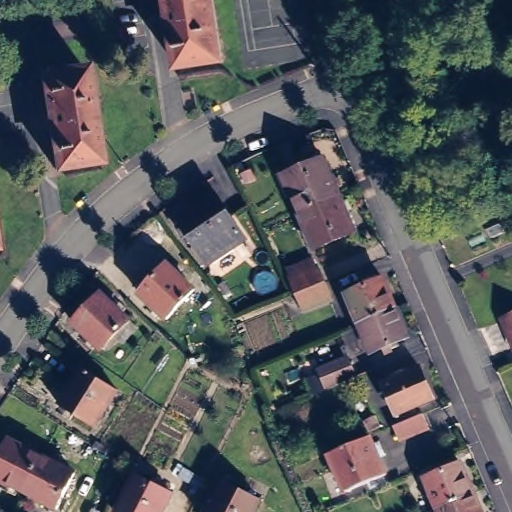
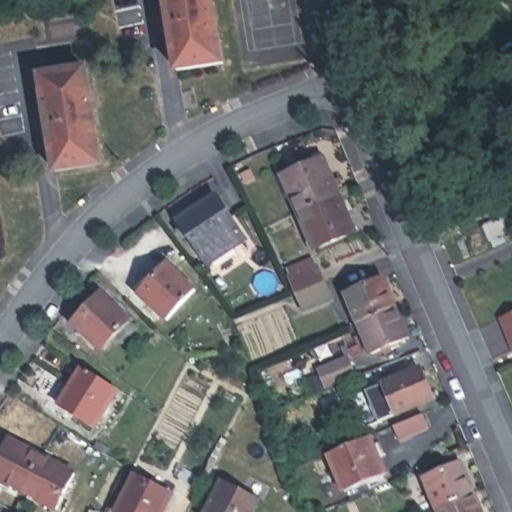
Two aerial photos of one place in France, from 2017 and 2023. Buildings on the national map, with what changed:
unchanged [(221,67),(178,74),(167,0),(211,0),(221,67)]
unchanged [(85,74),(99,167),(55,174),(41,81),(85,74)]
unchanged [(318,163),(334,200),(293,217),(277,180),(318,163)]
unchanged [(334,200),(350,236),(309,254),(293,217),(334,200)]
unchanged [(178,236),(173,229),(216,201),(226,215),(231,224),(225,227),(240,249),(227,257),(229,259),(206,274),(203,273),(187,250),(181,253),(172,240),(178,236)]
unchanged [(175,325),(168,317),(161,324),(133,297),(160,268),(190,295),(180,305),(187,311),(175,325)]
unchanged [(297,315),(290,298),(284,282),(312,271),(318,287),(325,303),(297,315)]
unchanged [(395,312),(359,327),(346,297),(345,292),(362,285),(365,290),(382,282),(395,312)]
unchanged [(116,346),(110,340),(95,355),(67,328),(96,297),(125,324),(131,330),(116,346)]
unchanged [(395,312),(407,342),(371,357),(359,327),(395,312)]
unchanged [(501,319),(512,315),(512,344),(501,319)]
unchanged [(347,358),(353,375),(325,386),(319,370),(347,358)]
unchanged [(391,385),(390,380),(400,376),(402,380),(420,373),(432,403),(396,419),(383,388),(391,385)]
unchanged [(117,400),(93,437),(59,415),(82,378),(117,400)]
unchanged [(428,434),(400,446),(393,431),(421,418),(428,434)]
unchanged [(368,441),(385,479),(344,496),(327,458),(368,441)]
unchanged [(17,498),(0,490),(0,451),(3,445),(36,463),(17,498)]
unchanged [(465,453),(477,482),(442,497),(430,468),(465,453)]
unchanged [(43,512),(17,498),(36,463),(70,480),(53,512),(43,512)]
unchanged [(490,511),(489,512),(448,512),(442,497),(477,482),(490,511)]
unchanged [(172,503),(167,512),(121,512),(135,484),(172,503)]
unchanged [(258,512),(211,512),(222,490),(259,510),(258,512)]

